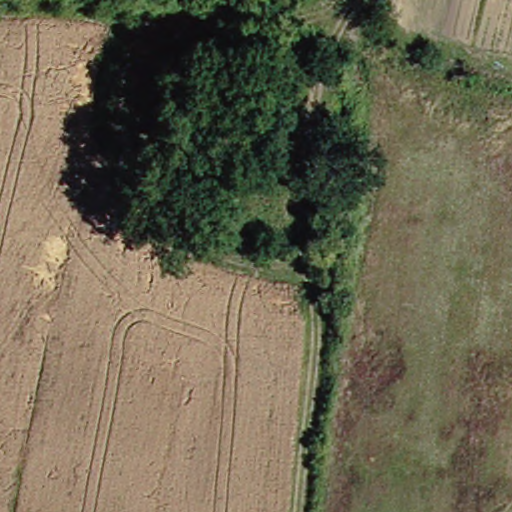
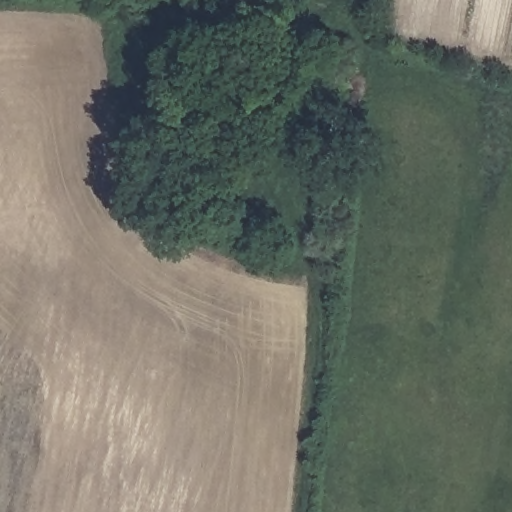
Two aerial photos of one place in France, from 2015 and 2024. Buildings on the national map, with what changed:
[]

